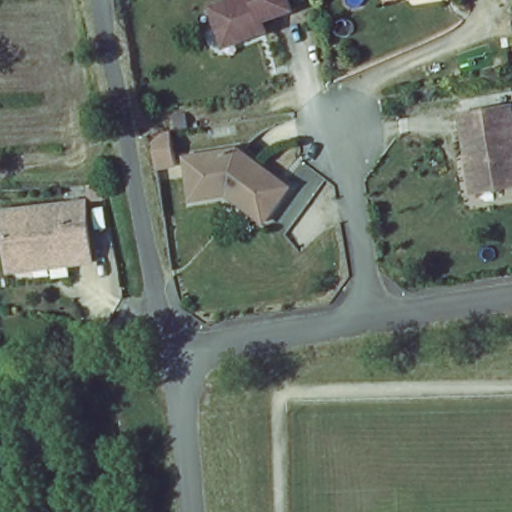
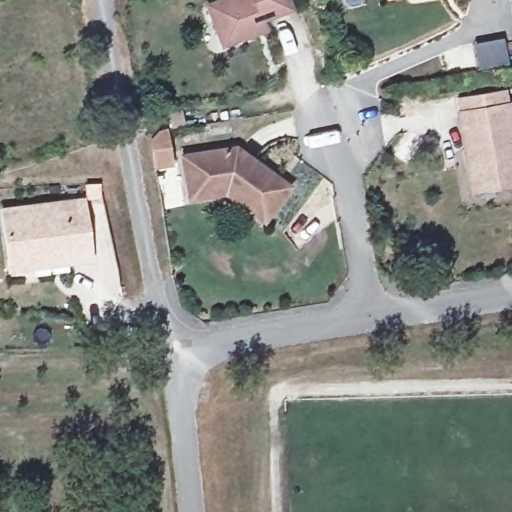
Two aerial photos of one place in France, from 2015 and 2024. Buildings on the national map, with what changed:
unchanged [(209,30),(200,4),(211,0),(280,0),(282,7),(253,18),(256,28),(248,30),(231,36),(213,43),(209,30)]
unchanged [(509,103),(512,125),(512,181),(469,189),(457,111),(509,103)]
unchanged [(225,192),(189,197),(183,156),(237,148),(289,185),(263,219),(225,192)]
unchanged [(90,264),(9,272),(2,211),(84,203),(90,264)]

